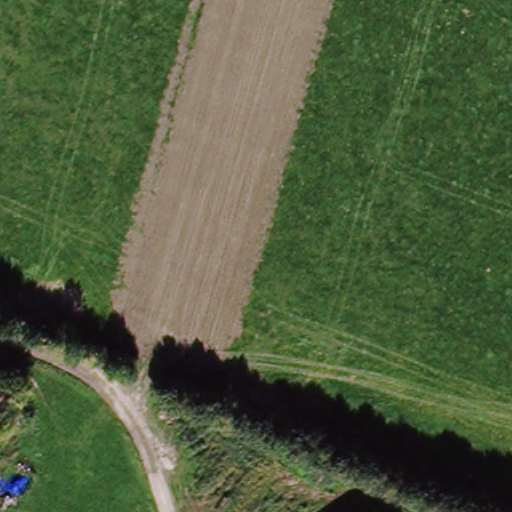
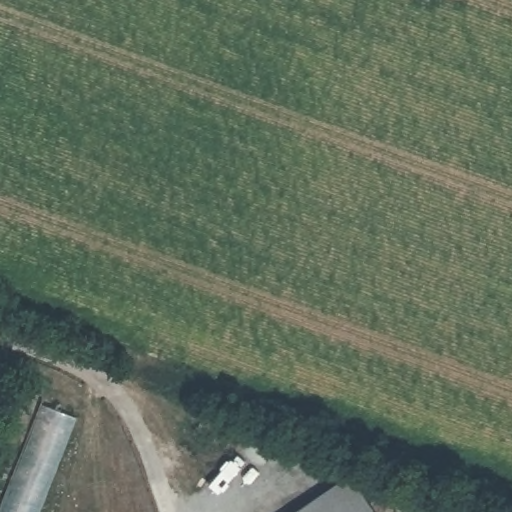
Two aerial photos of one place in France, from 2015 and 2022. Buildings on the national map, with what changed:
new [(35,512),(0,512),(0,503),(40,404),(73,416),(35,512)]
new [(376,511),(375,512),(299,512),(353,475),(376,511)]
unchanged [(377,512),(375,512),(376,511),(377,512)]

